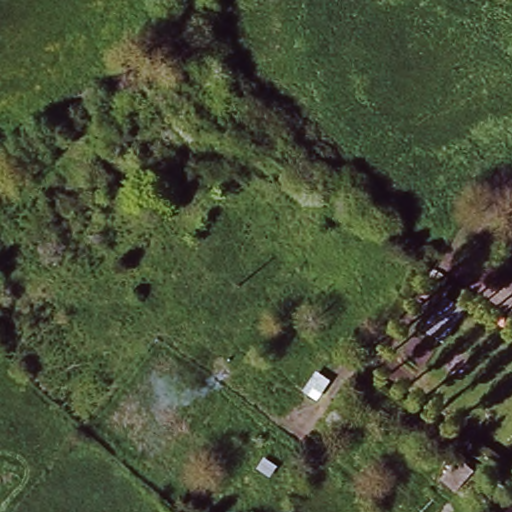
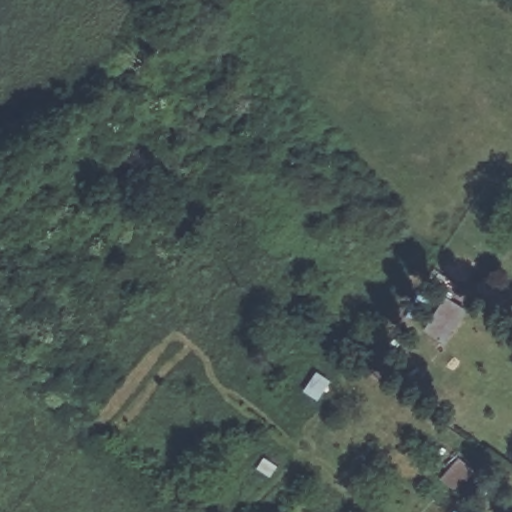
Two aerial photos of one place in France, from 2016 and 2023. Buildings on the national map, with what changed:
unchanged [(462,466),(443,488),(433,480),(453,458),(462,466)]

